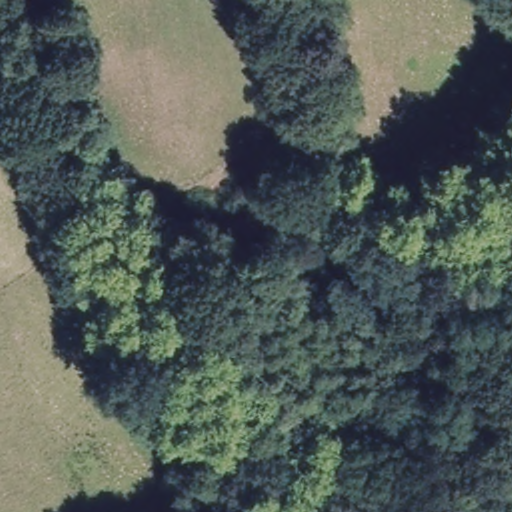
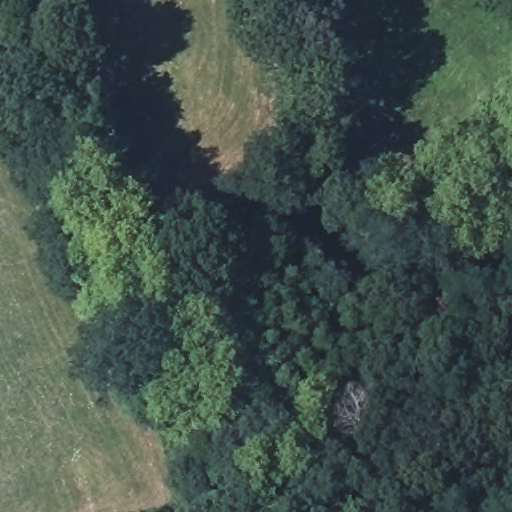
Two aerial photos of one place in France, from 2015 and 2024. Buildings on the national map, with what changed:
[]

